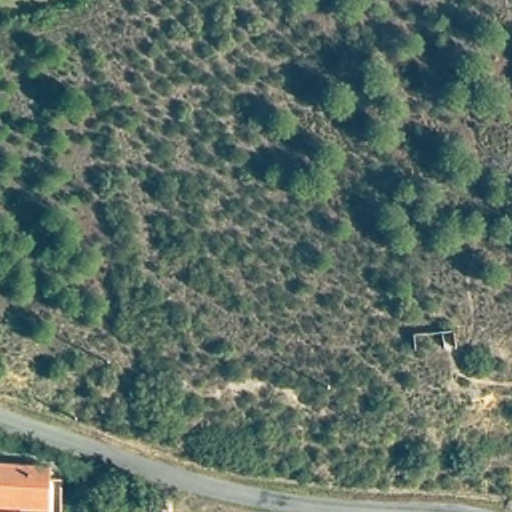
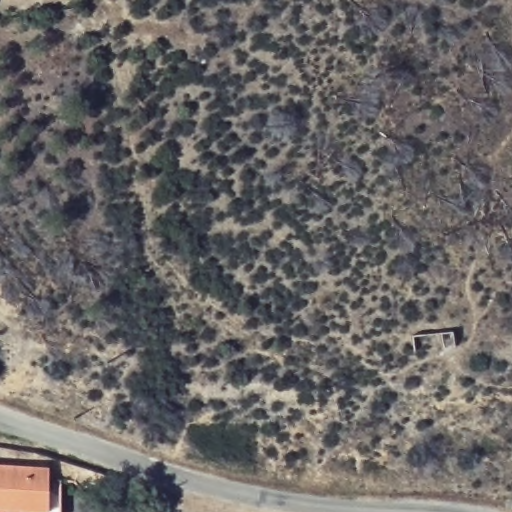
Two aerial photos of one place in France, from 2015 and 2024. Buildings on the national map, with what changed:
unchanged [(65,475),(55,474),(54,511),(0,509),(0,462),(65,465),(65,475)]
unchanged [(512,498),(512,511),(505,508),(508,497),(512,498)]

